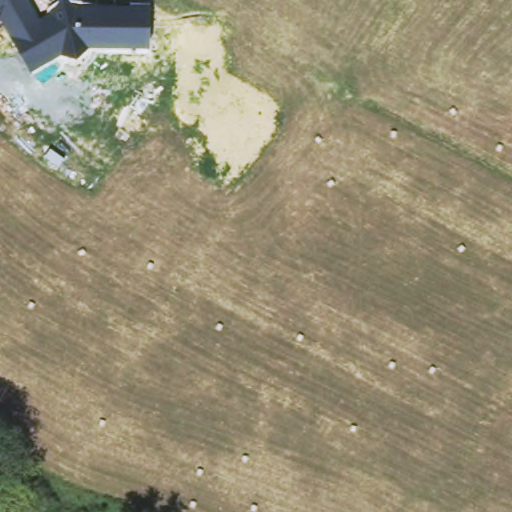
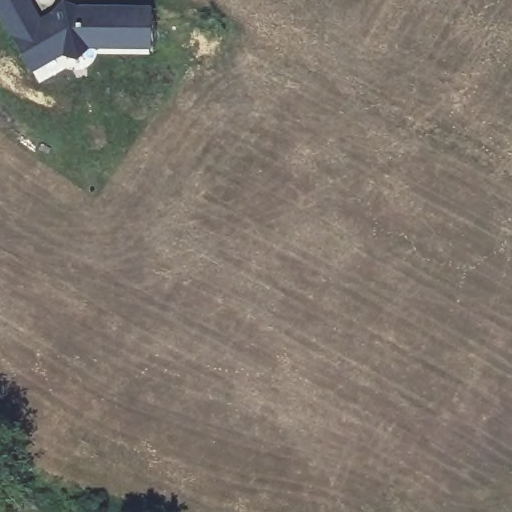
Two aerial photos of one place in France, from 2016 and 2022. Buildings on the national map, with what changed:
unchanged [(27,0),(38,19),(63,1),(148,4),(149,48),(87,49),(77,61),(60,56),(30,74),(0,20),(0,0),(27,0)]

